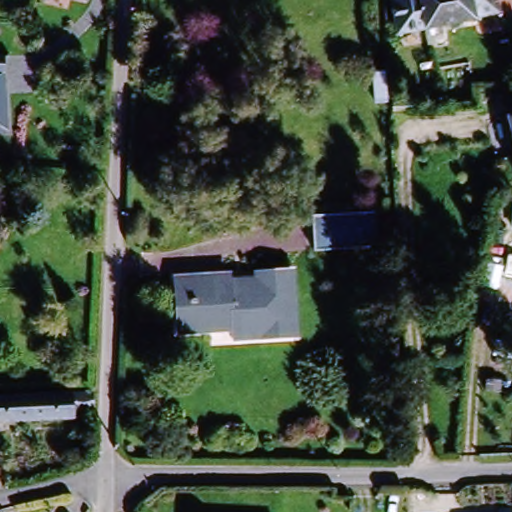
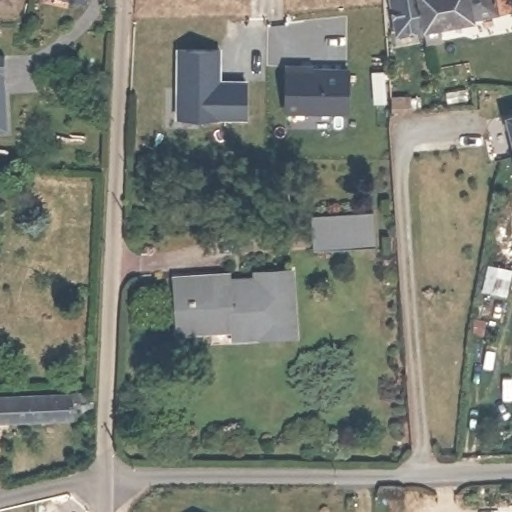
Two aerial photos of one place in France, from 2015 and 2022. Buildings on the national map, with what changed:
unchanged [(506,17),(416,30),(387,33),(383,0),(503,0),(506,17)]
new [(217,47),(217,79),(227,79),(244,79),(245,115),(176,115),(176,47),(217,47)]
new [(287,67),(312,67),(312,70),(348,70),(347,111),(286,111),(287,67)]
new [(387,67),(390,98),(371,100),(368,69),(387,67)]
unchanged [(0,92),(1,129),(0,129),(0,92)]
unchanged [(506,117),(512,116),(512,142),(506,117)]
unchanged [(373,216),(373,247),(328,248),(328,216),(373,216)]
unchanged [(226,285),(255,285),(255,276),(295,276),(296,345),(257,346),(256,320),(225,320),(225,334),(169,333),(169,275),(226,275),(226,285)]
unchanged [(80,405),(81,415),(38,420),(34,395),(96,389),(98,401),(80,405)]
unchanged [(38,420),(0,423),(0,398),(34,395),(38,420)]
unchanged [(0,438),(0,427),(1,438),(0,438)]

